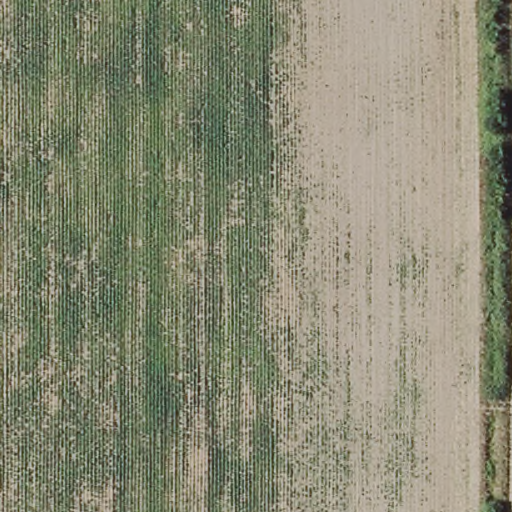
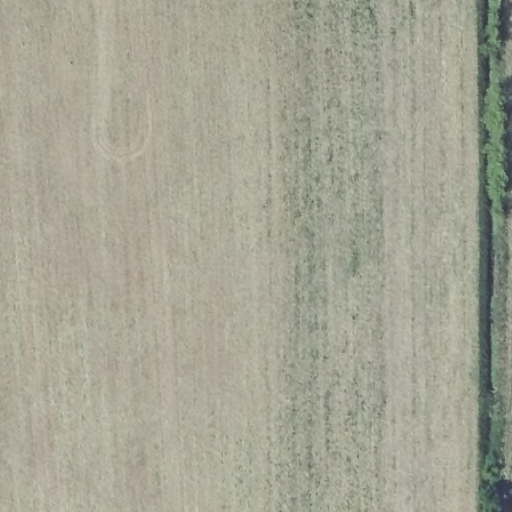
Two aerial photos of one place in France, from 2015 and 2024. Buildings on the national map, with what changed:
[]

